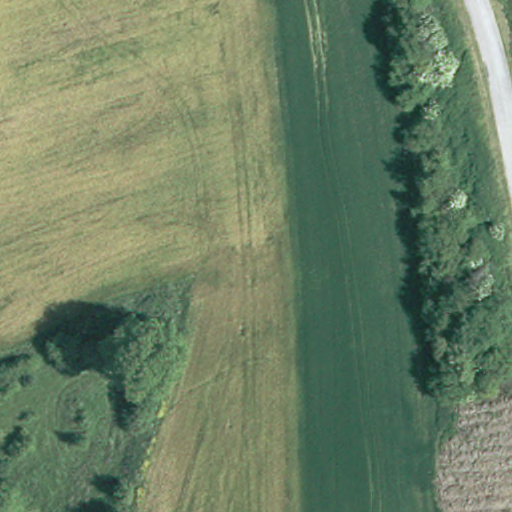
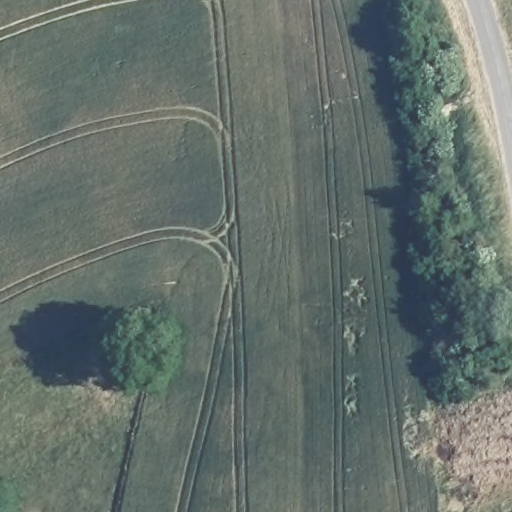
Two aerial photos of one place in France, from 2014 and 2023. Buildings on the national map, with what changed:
[]

